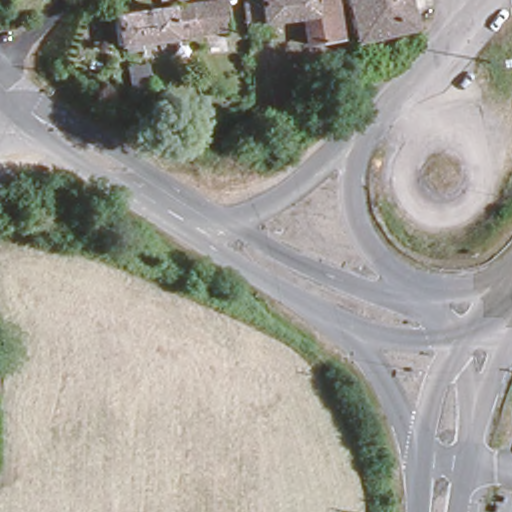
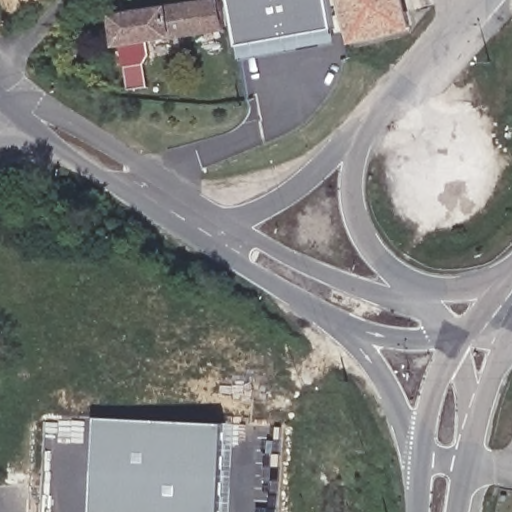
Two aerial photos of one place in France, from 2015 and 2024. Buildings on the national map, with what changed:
unchanged [(192,56),(187,30),(138,40),(139,50),(124,54),(122,45),(113,47),(107,19),(187,0),(214,0),(218,23),(223,49),(192,56)]
unchanged [(244,36),(243,26),(239,0),(330,0),(337,33),(303,39),(298,15),(269,21),(271,32),(244,36)]
unchanged [(342,26),(338,0),(402,0),(406,17),(342,26)]
demolished [(246,51),(245,43),(253,42),(254,50),(246,51)]
unchanged [(134,86),(130,68),(167,62),(170,80),(134,86)]
new [(92,512),(96,419),(223,425),(221,471),(220,512),(92,512)]

